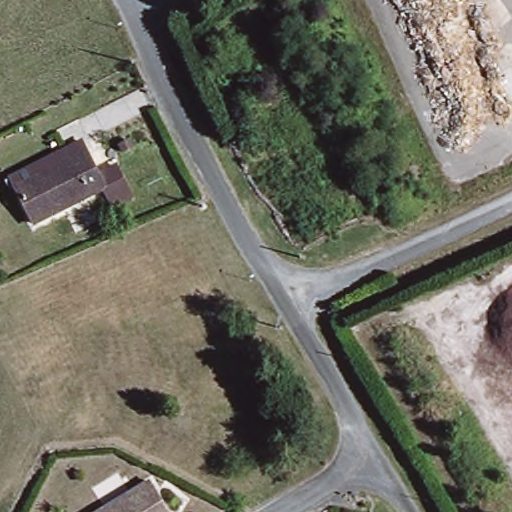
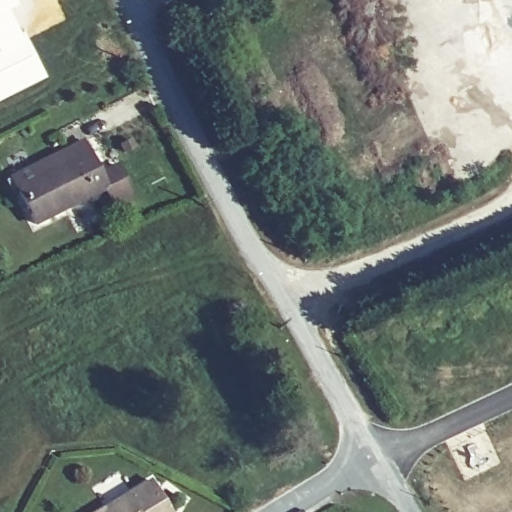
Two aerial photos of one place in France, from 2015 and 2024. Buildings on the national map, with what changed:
new [(13,0),(17,8),(7,14),(33,58),(44,81),(0,104),(0,0),(13,0)]
unchanged [(81,142),(86,152),(39,176),(42,182),(19,194),(11,177),(81,142)]
unchanged [(121,147),(129,142),(133,150),(124,154),(121,147)]
unchanged [(99,175),(118,165),(133,196),(114,206),(105,189),(35,225),(19,194),(42,182),(39,176),(86,152),(99,175)]
unchanged [(141,479),(162,512),(88,512),(141,479)]

